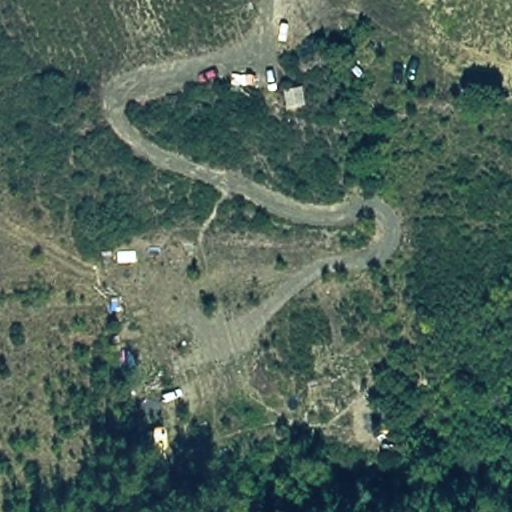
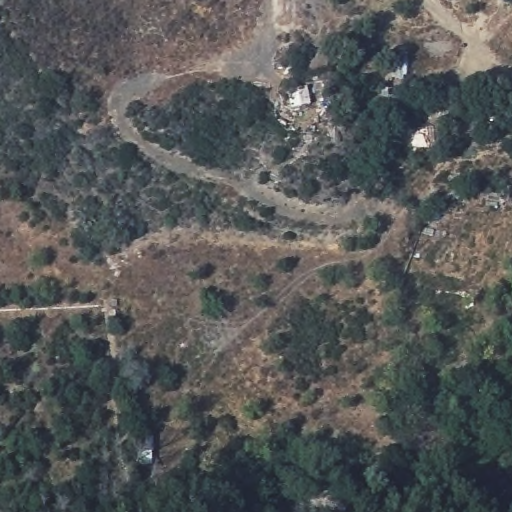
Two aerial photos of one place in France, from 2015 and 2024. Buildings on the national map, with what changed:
unchanged [(289,111),(284,88),(306,84),(311,106),(289,111)]

